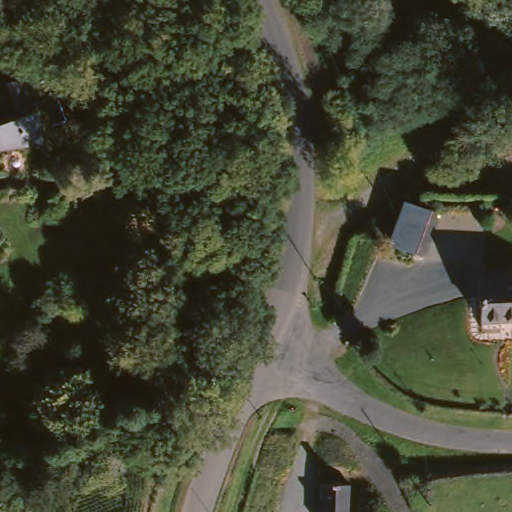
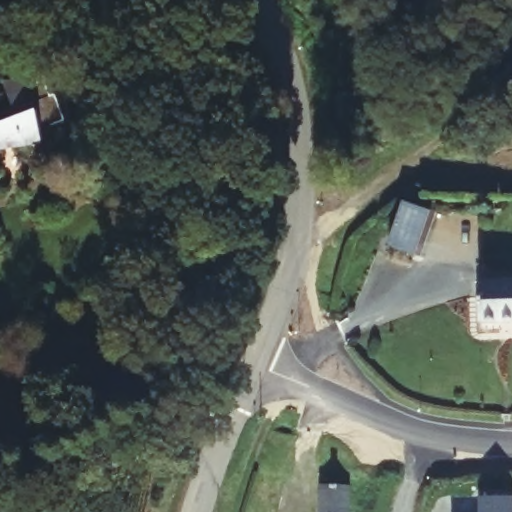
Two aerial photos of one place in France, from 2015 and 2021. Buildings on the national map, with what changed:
unchanged [(0,147),(0,116),(13,111),(3,75),(24,69),(35,104),(53,98),(62,119),(41,127),(43,135),(0,147)]
unchanged [(383,245),(396,201),(434,212),(418,258),(383,245)]
unchanged [(474,276),(512,273),(512,314),(477,316),(474,276)]
unchanged [(314,512),(308,491),(341,482),(347,512),(314,512)]
new [(512,498),(512,512),(482,512),(483,496),(512,498)]

